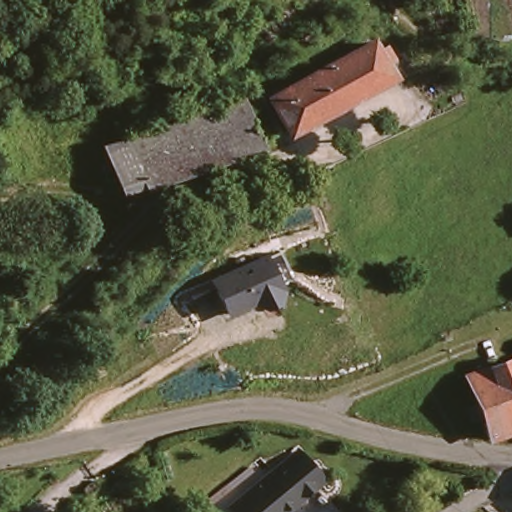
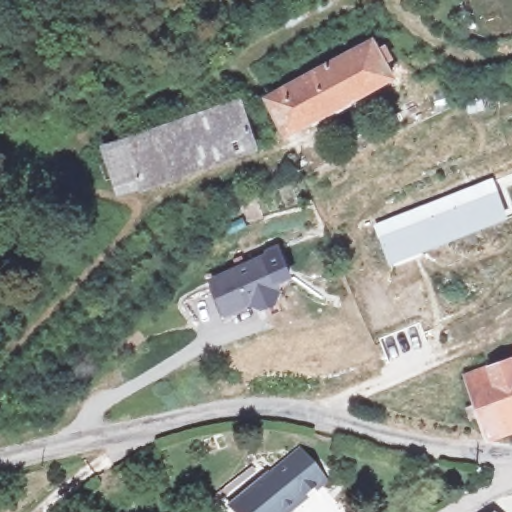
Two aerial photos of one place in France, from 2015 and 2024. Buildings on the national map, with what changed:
unchanged [(291,130),(274,90),(373,40),(376,48),(381,45),(387,57),(383,60),(392,79),(291,130)]
unchanged [(121,191),(106,147),(163,130),(173,126),(206,112),(229,104),(236,115),(257,106),(269,137),(143,191),(141,185),(121,191)]
new [(493,179),(508,219),(390,265),(374,225),(493,179)]
unchanged [(289,278),(282,286),(283,288),(279,301),(261,310),(253,305),(225,316),(210,280),(266,257),(282,251),(289,278)]
unchanged [(498,411),(490,415),(483,400),(492,397),(478,372),(512,356),(512,427),(507,429),(498,411)]
unchanged [(289,512),(241,512),(233,502),(271,468),(274,472),(298,450),(321,475),(297,498),(301,501),(289,512)]

